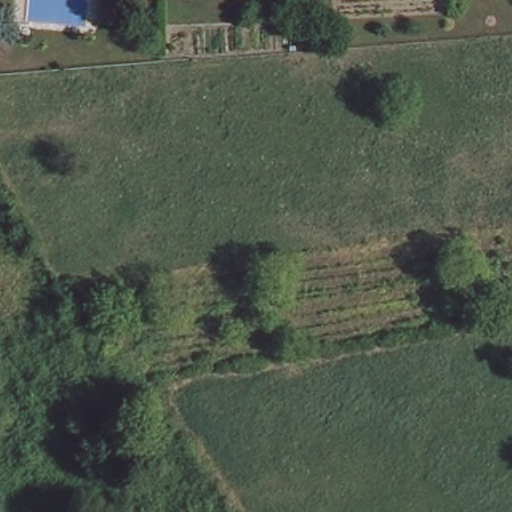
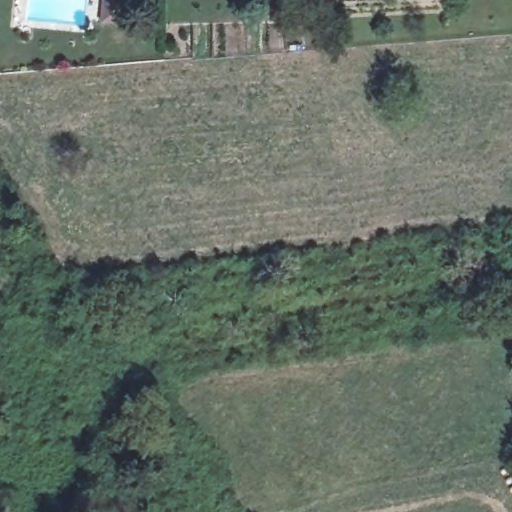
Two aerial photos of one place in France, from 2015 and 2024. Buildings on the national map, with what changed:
unchanged [(117,26),(115,0),(131,0),(133,26),(117,26)]

